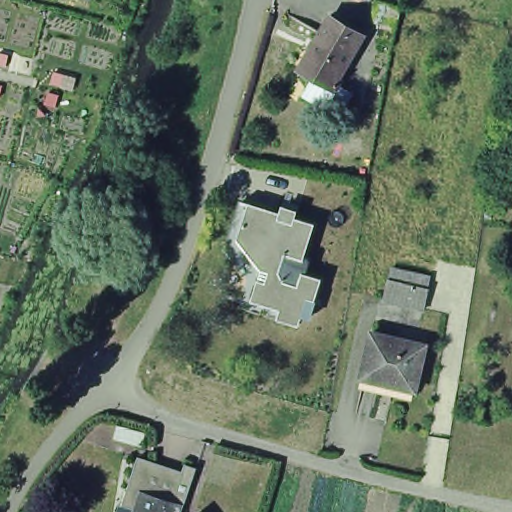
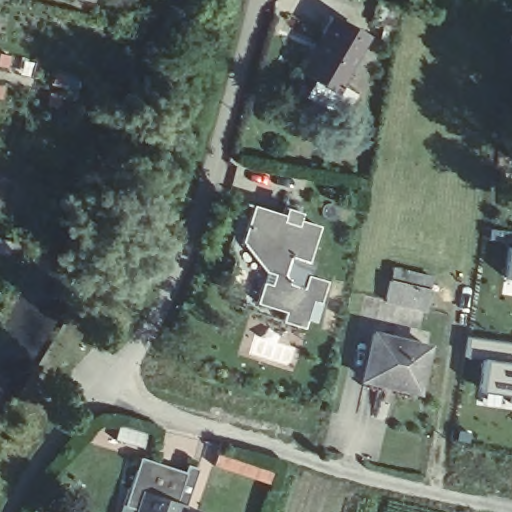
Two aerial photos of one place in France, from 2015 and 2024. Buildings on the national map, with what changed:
unchanged [(314,94),(302,87),(301,81),(308,69),(293,59),(325,6),(358,26),(330,75),(320,92),(314,94)]
unchanged [(257,274),(231,266),(222,256),(225,247),(238,206),(310,229),(300,261),(305,263),(305,264),(300,278),(316,284),(303,323),(247,305),(257,274)]
new [(502,278),(505,249),(512,249),(512,279),(502,278)]
unchanged [(380,271),(382,272),(420,280),(415,300),(379,291),(375,290),(380,271)]
unchanged [(367,333),(379,336),(422,347),(411,391),(410,391),(408,398),(372,389),(355,385),(357,378),(367,333)]
new [(512,343),(512,395),(480,390),(483,359),(463,356),(465,337),(512,343)]
unchanged [(477,406),(487,409),(484,422),(473,419),(477,406)]
unchanged [(128,490),(139,459),(154,464),(185,474),(175,506),(182,508),(181,512),(138,512),(122,507),(128,490)]

